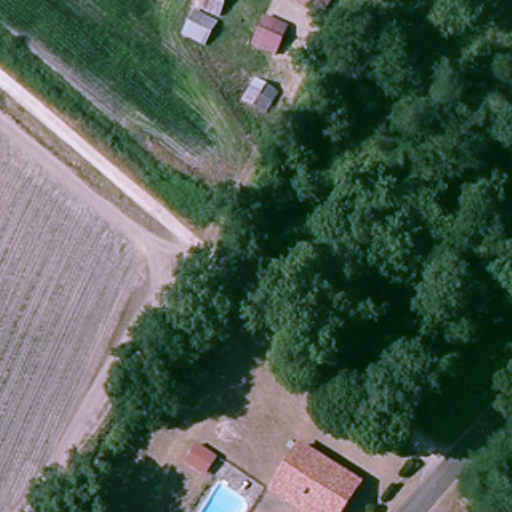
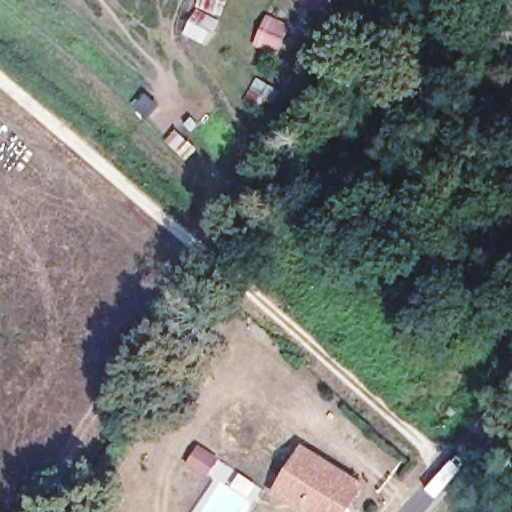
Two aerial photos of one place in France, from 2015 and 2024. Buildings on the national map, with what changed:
unchanged [(306,512),(276,490),(310,443),(361,480),(338,512),(306,512)]

